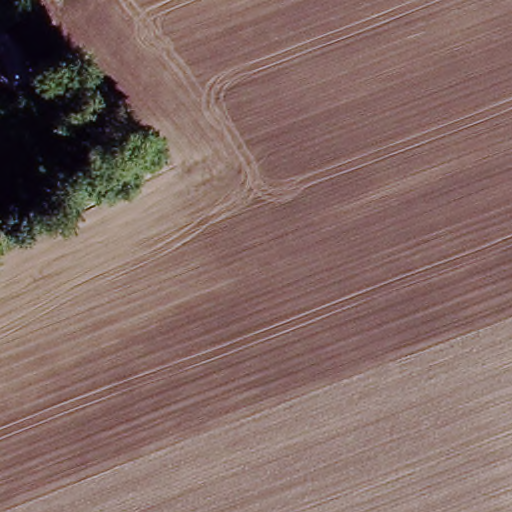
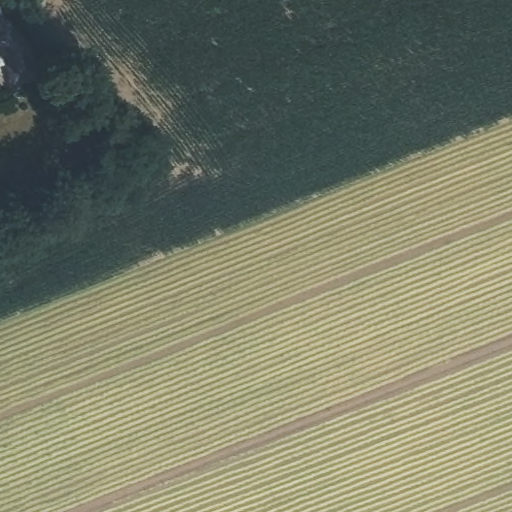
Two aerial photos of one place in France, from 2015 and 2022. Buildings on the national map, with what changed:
unchanged [(6,43),(14,67),(0,71),(0,44),(6,43)]

